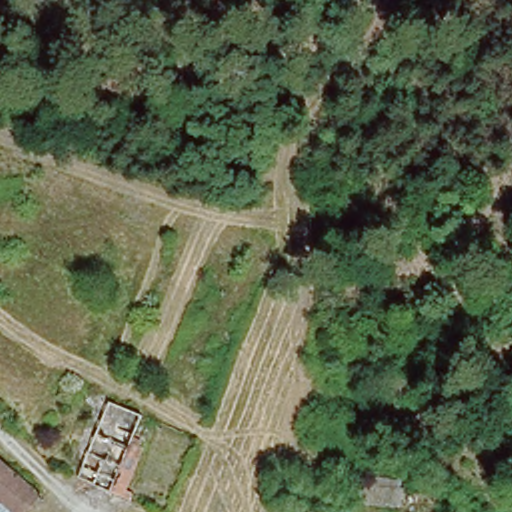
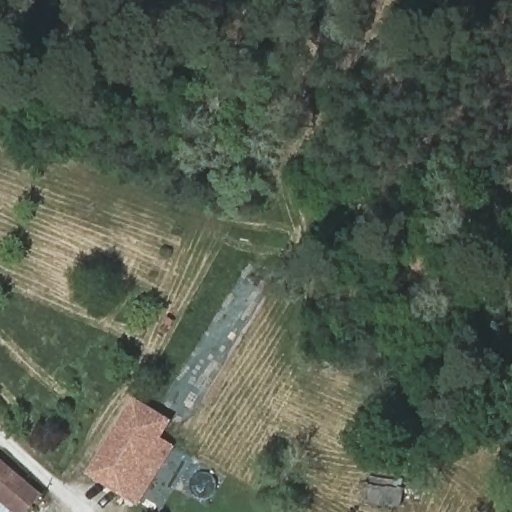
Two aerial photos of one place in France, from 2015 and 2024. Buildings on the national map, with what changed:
new [(136,507),(85,475),(134,397),(172,422),(162,439),(175,448),(136,507)]
demolished [(116,495),(76,479),(107,399),(146,414),(116,495)]
unchanged [(30,512),(6,512),(0,507),(0,472),(37,503),(30,512)]
unchanged [(404,512),(394,512),(364,509),(367,485),(406,488),(404,512)]

